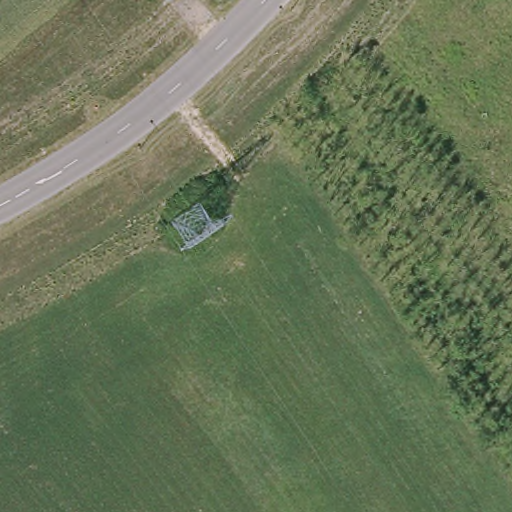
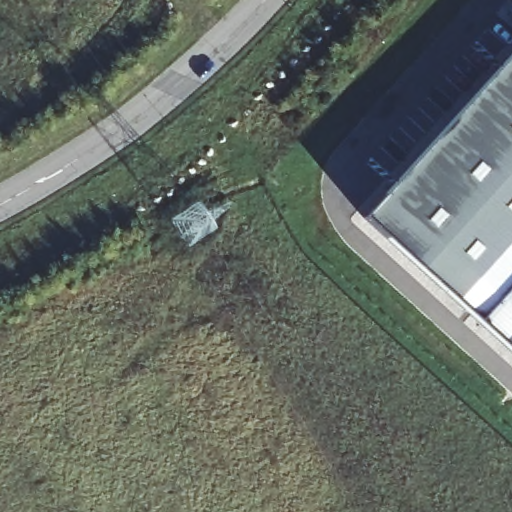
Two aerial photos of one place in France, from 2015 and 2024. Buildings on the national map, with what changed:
new [(507,16),(512,11),(512,22),(507,16)]
new [(350,221),(512,54),(512,366),(350,221)]

